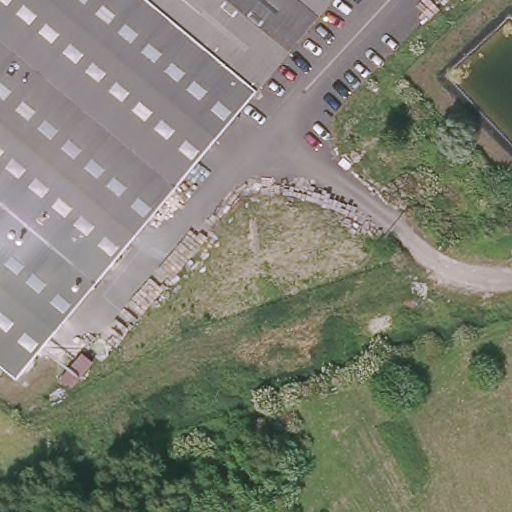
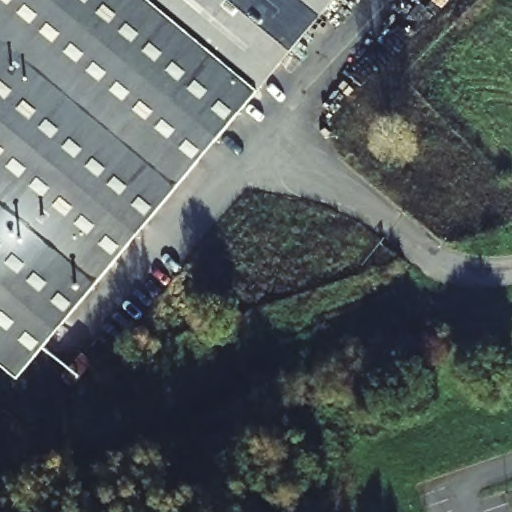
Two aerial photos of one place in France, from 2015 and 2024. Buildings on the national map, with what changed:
unchanged [(211,146),(115,263),(2,160),(0,158),(0,0),(58,0),(128,66),(211,146)]
unchanged [(187,0),(128,66),(58,0),(187,0)]
unchanged [(187,0),(224,0),(285,57),(211,146),(128,66),(187,0)]
unchanged [(224,0),(331,0),(285,57),(224,0)]
unchanged [(0,158),(2,160),(115,263),(95,287),(34,362),(0,333),(0,158)]
unchanged [(20,379),(0,363),(0,333),(34,362),(20,379)]

